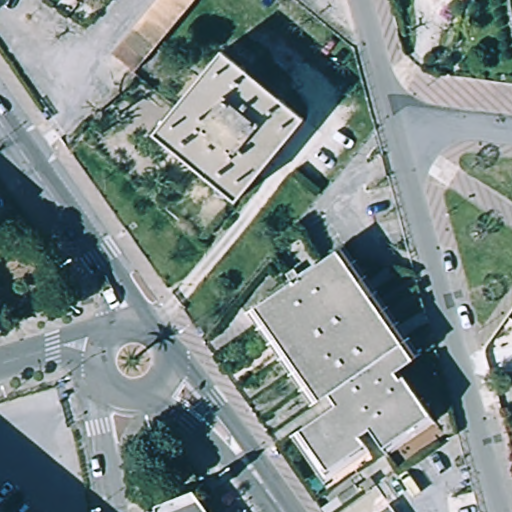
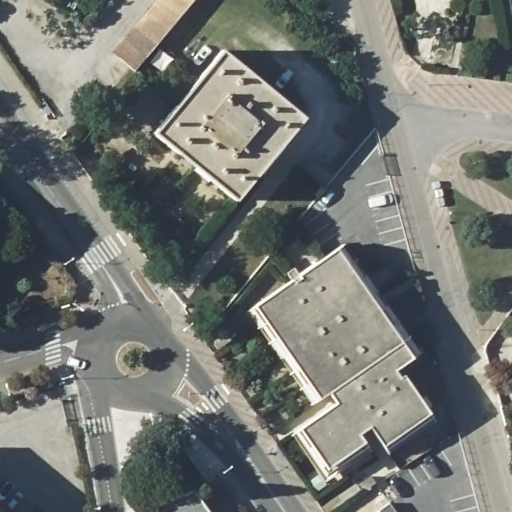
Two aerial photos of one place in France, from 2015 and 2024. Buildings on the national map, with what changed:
unchanged [(158,0),(194,0),(135,72),(113,54),(158,0)]
unchanged [(156,133),(179,106),(202,79),(225,51),(307,119),(284,146),(262,174),(238,202),(213,180),(179,152),(180,152),(156,133)]
unchanged [(310,427),(344,404),(337,393),(322,402),(257,311),(299,281),(295,273),(302,268),(307,275),(341,252),(416,362),(400,372),(405,378),(410,375),(434,411),(387,442),(377,428),(367,435),(370,438),(335,462),(310,427)]
unchanged [(163,508),(192,499),(201,512),(163,512),(163,508)]
unchanged [(380,512),(392,503),(398,512),(381,512),(380,512)]

